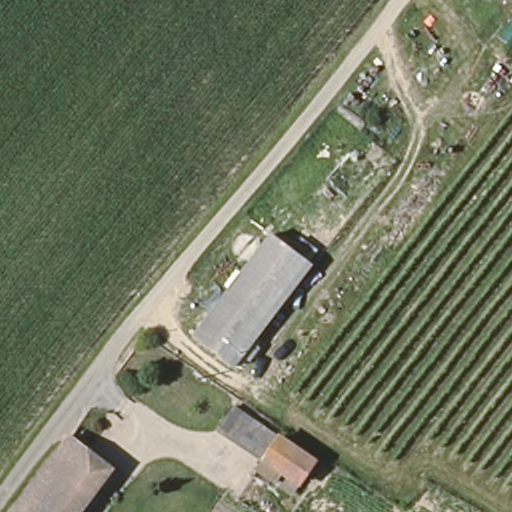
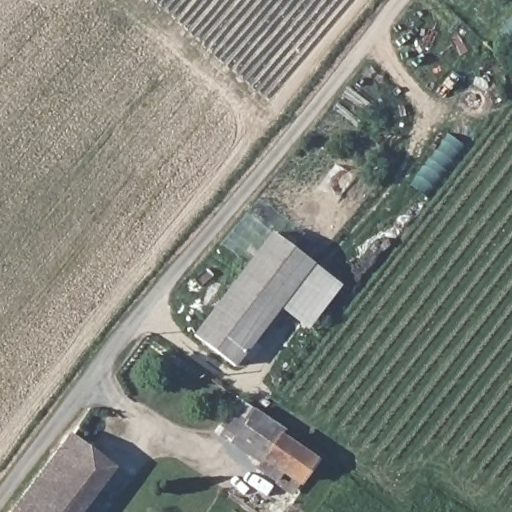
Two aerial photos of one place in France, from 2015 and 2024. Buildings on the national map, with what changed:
unchanged [(192,338),(271,233),(312,264),(235,368),(192,338)]
new [(308,330),(280,308),(312,264),(342,285),(308,330)]
unchanged [(259,463),(217,433),(233,407),(275,440),(259,463)]
unchanged [(110,472),(78,512),(12,512),(67,438),(110,472)]
unchanged [(259,463),(275,440),(313,467),(298,489),(259,463)]

